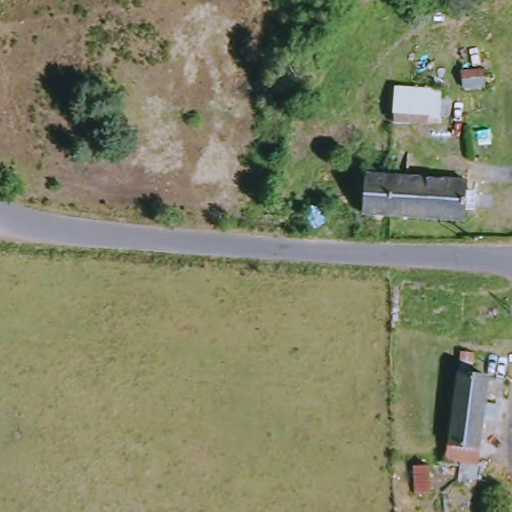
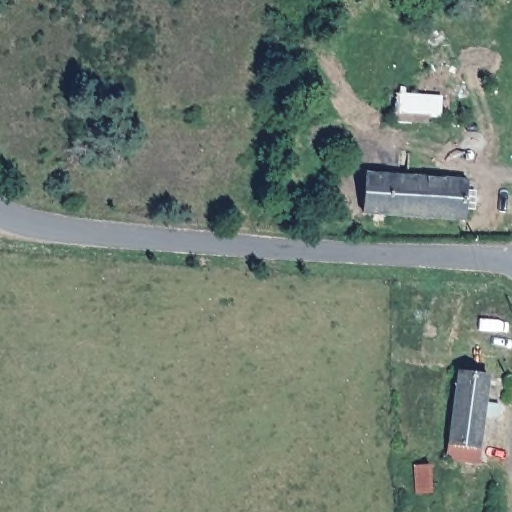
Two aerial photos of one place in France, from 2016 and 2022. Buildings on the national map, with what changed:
unchanged [(448,102),(447,119),(438,119),(437,125),(406,123),(407,99),(421,100),(448,102)]
unchanged [(389,176),(471,181),(468,220),(368,214),(371,175),(389,176)]
unchanged [(453,460),(464,373),(493,377),(483,463),(453,460)]
unchanged [(413,494),(413,468),(432,468),(432,494),(413,494)]

